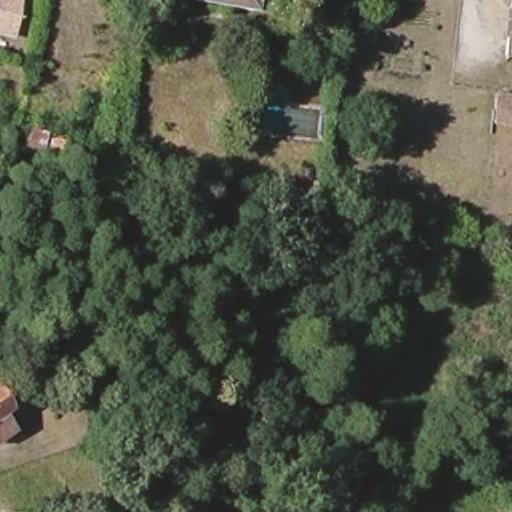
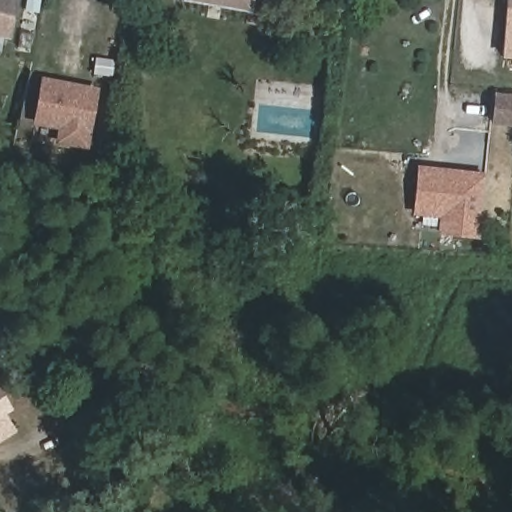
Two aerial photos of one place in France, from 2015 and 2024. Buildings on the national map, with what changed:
unchanged [(11,37),(0,35),(0,0),(18,0),(11,37)]
unchanged [(246,12),(179,0),(248,0),(246,12)]
unchanged [(501,58),(506,9),(512,10),(512,59),(501,58)]
new [(48,80),(101,91),(91,146),(64,140),(66,126),(40,121),(48,80)]
unchanged [(491,125),(494,97),(512,99),(512,127),(491,125)]
new [(485,172),(478,238),(441,234),(442,224),(438,223),(438,217),(412,214),(417,165),(485,172)]
unchanged [(325,191),(315,189),(316,183),(326,185),(325,191)]
unchanged [(502,248),(503,239),(512,240),(512,249),(502,248)]
unchanged [(0,412),(0,400),(5,408),(0,412)]
unchanged [(0,437),(0,416),(9,430),(0,437)]

